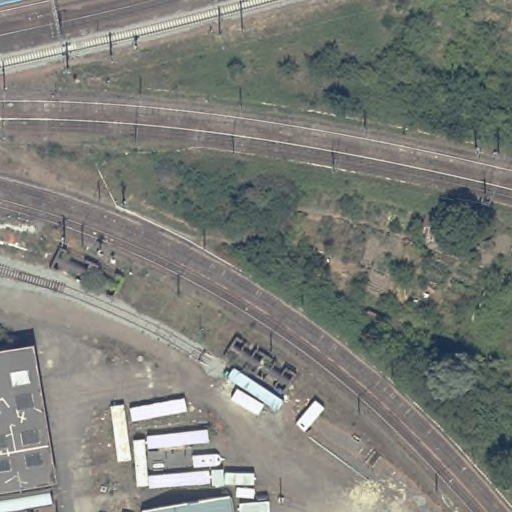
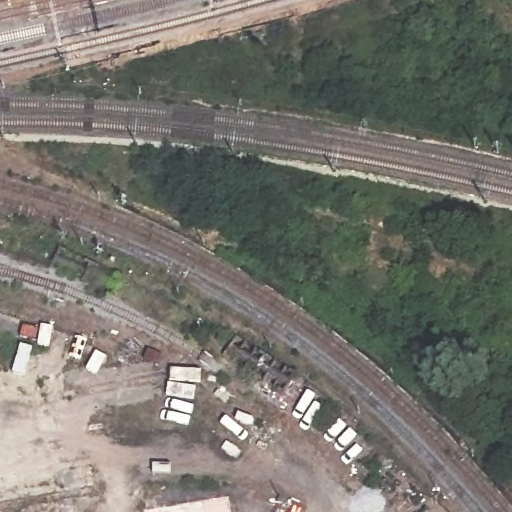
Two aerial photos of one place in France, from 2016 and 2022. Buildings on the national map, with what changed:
demolished [(37,353),(60,488),(0,498),(0,359),(37,353)]
demolished [(226,496),(229,512),(144,512),(144,511),(226,496)]

